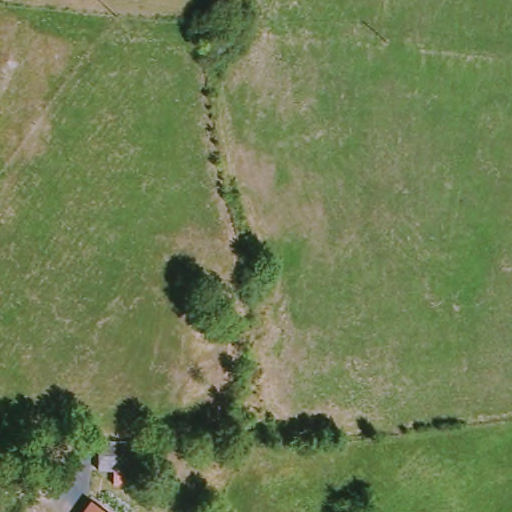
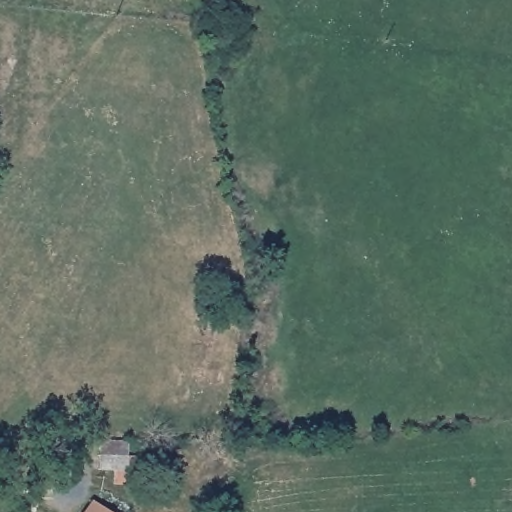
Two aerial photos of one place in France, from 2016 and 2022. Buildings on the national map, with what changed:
unchanged [(146,494),(122,494),(122,478),(103,479),(103,465),(103,446),(134,448),(134,465),(146,465),(146,494)]
unchanged [(94,512),(96,508),(102,512),(94,512)]

